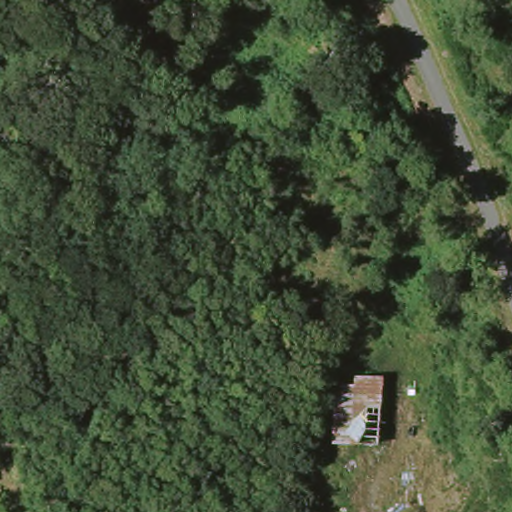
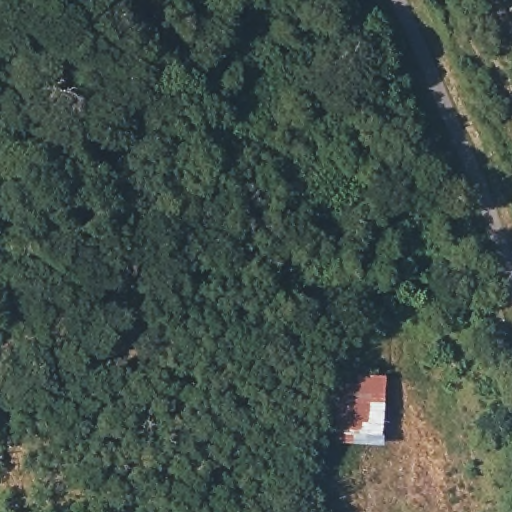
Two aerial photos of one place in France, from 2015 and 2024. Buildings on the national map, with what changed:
unchanged [(377,441),(332,438),(339,371),(385,375),(377,441)]

